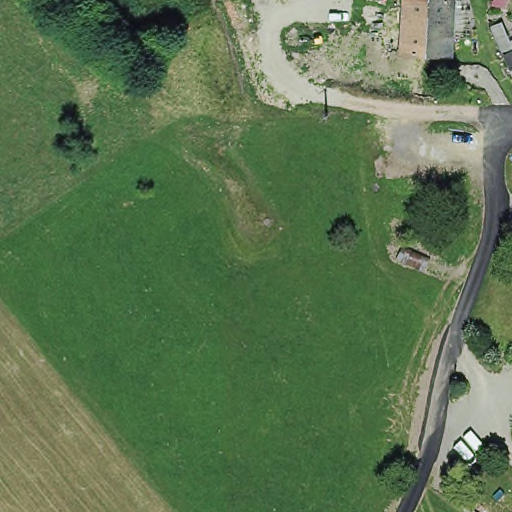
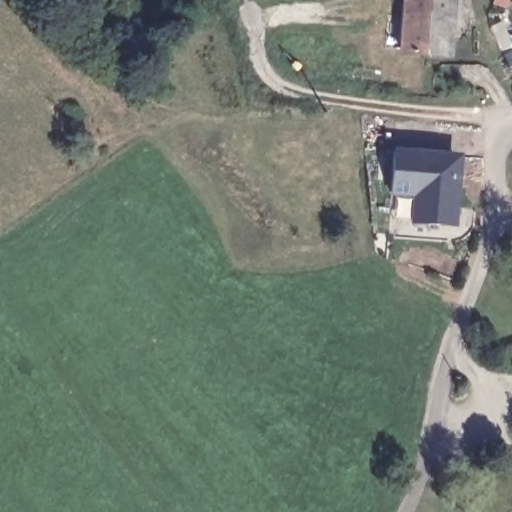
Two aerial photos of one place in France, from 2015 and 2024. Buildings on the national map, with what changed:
unchanged [(402,0),(427,0),(425,50),(398,49),(402,0)]
unchanged [(447,51),(425,50),(427,0),(450,0),(450,10),(462,11),(460,37),(459,49),(447,48),(447,51)]
unchanged [(508,57),(492,25),(497,23),(507,18),(512,28),(512,55),(508,57)]
new [(457,229),(411,224),(413,199),(387,197),(392,148),(463,154),(457,229)]

